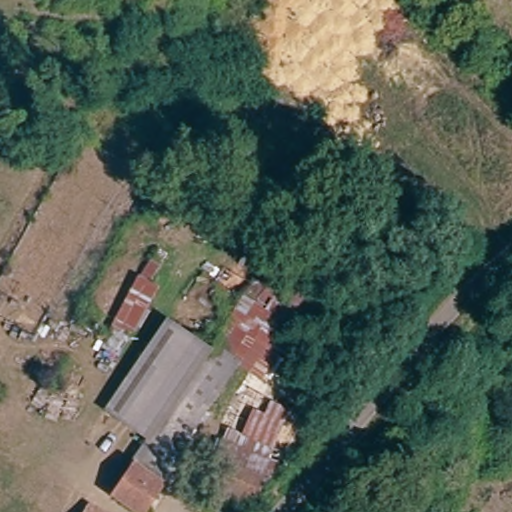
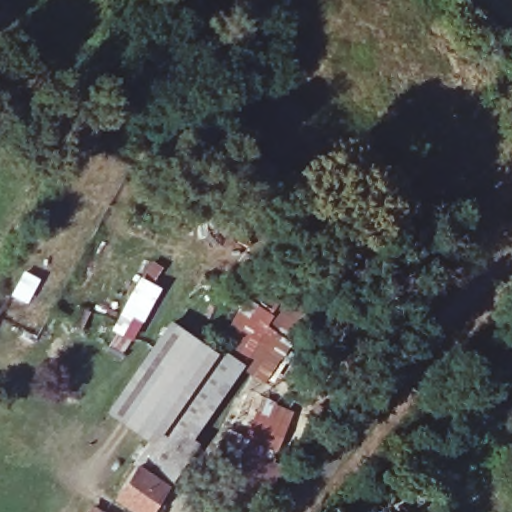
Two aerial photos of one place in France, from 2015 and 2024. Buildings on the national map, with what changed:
unchanged [(155,284),(159,285),(128,341),(108,332),(141,277),(162,248),(169,255),(155,284)]
unchanged [(211,351),(218,343),(244,297),(257,276),(281,290),(288,279),(320,301),(290,342),(262,383),(239,365),(191,436),(198,442),(168,482),(137,461),(135,457),(149,441),(108,410),(168,320),(211,351)]
unchanged [(263,478),(253,506),(196,490),(209,457),(232,405),(241,410),(233,431),(243,436),(255,410),(266,414),(274,401),(293,409),(263,478)]
unchanged [(114,499),(137,461),(168,482),(150,512),(134,512),(114,499)]
unchanged [(93,507),(96,510),(99,512),(89,512),(93,507)]

